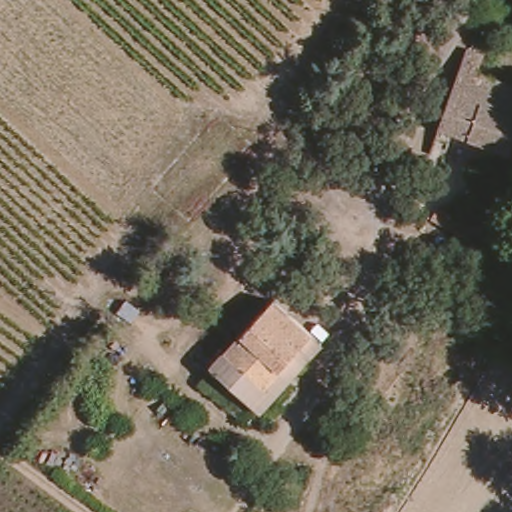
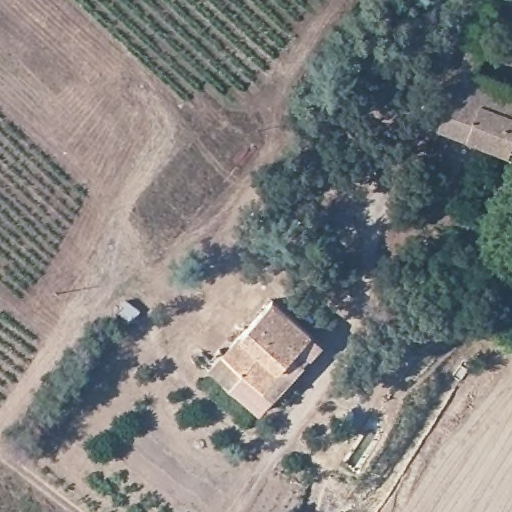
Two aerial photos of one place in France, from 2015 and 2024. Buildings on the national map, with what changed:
unchanged [(478,70),(512,84),(512,153),(440,123),(462,63),(469,47),(485,53),(478,70)]
unchanged [(438,217),(489,238),(480,254),(478,258),(430,231),(438,217)]
unchanged [(313,338),(252,405),(213,366),(270,299),(313,338)]

